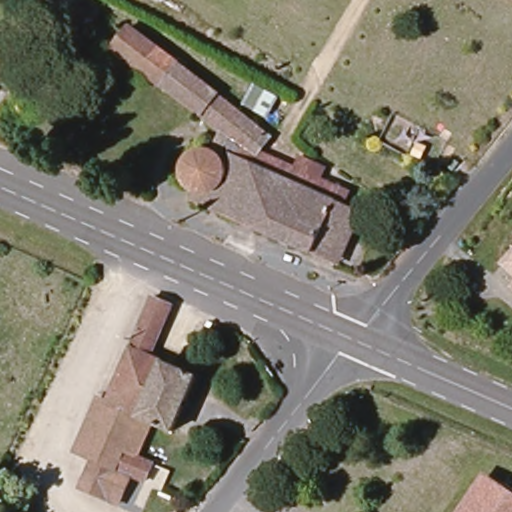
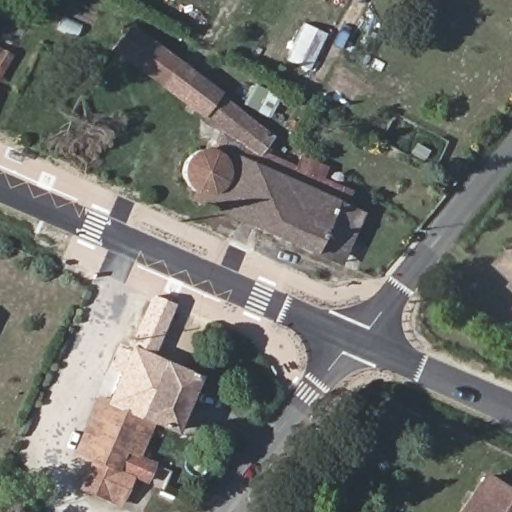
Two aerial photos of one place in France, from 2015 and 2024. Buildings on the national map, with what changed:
unchanged [(276,139),(265,156),(357,192),(352,209),(371,217),(345,265),(315,250),(241,221),(195,203),(199,193),(191,187),(188,179),(186,169),(187,160),(194,152),(202,150),(212,151),(219,152),(240,160),(242,150),(118,49),(134,24),(276,139)]
unchanged [(100,195),(100,189),(90,185),(93,177),(94,176),(101,176),(103,172),(114,175),(116,182),(133,190),(127,205),(100,195)]
unchanged [(405,268),(393,260),(401,251),(413,260),(405,268)]
unchanged [(512,261),(512,272),(507,267),(512,261)]
unchanged [(132,418),(122,446),(162,468),(155,488),(141,482),(107,465),(91,457),(109,413),(138,342),(153,302),(174,312),(154,363),(132,418)]
unchanged [(199,382),(176,436),(132,418),(154,363),(199,382)]
unchanged [(128,510),(86,491),(93,476),(101,478),(107,465),(141,482),(128,510)]
unchanged [(492,488),(495,488),(498,488),(500,489),(503,490),(506,490),(508,491),(510,492),(512,493),(512,512),(465,512),(485,483),(492,488)]

